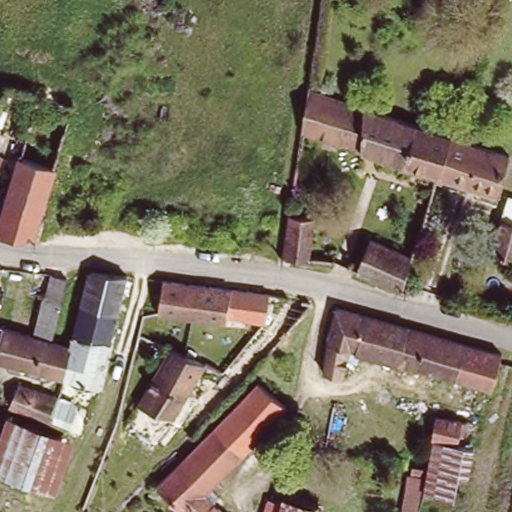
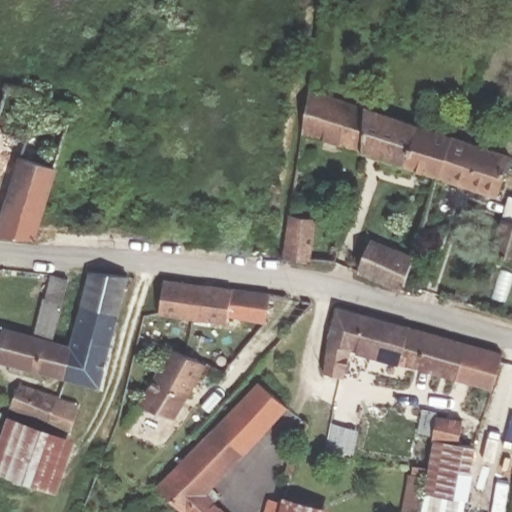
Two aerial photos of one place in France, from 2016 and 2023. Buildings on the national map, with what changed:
unchanged [(435,177),(312,136),(309,157),(295,155),(305,88),(447,136),(435,177)]
unchanged [(2,97),(0,106),(0,97),(2,97)]
unchanged [(447,136),(505,156),(493,196),(435,177),(447,136)]
unchanged [(52,166),(33,239),(0,234),(0,214),(18,158),(52,166)]
unchanged [(508,198),(512,199),(512,259),(490,250),(508,198)]
unchanged [(286,219),(312,223),(306,261),(290,260),(280,258),(286,219)]
unchanged [(395,289),(352,269),(367,235),(408,254),(395,289)]
unchanged [(60,305),(50,343),(32,338),(42,300),(46,301),(54,268),(68,269),(60,305)]
unchanged [(88,282),(91,271),(127,279),(97,390),(61,380),(70,349),(88,282)]
unchanged [(263,325),(228,317),(228,322),(157,313),(162,278),(267,293),(263,325)]
unchanged [(338,307),(502,355),(492,389),(348,348),(340,377),(318,370),(338,307)]
unchanged [(61,380),(0,360),(0,329),(32,338),(50,343),(52,344),(70,349),(61,380)]
unchanged [(205,363),(172,421),(137,403),(167,347),(205,363)]
unchanged [(175,464),(200,439),(255,381),(279,404),(200,490),(224,512),(186,512),(156,485),(175,464)]
unchanged [(0,475),(0,434),(17,384),(81,405),(55,491),(0,475)]
unchanged [(474,447),(436,439),(437,435),(420,431),(423,415),(478,426),(474,447)]
unchanged [(424,490),(420,512),(400,512),(409,469),(425,471),(430,433),(437,435),(436,439),(474,447),(463,497),(424,490)]
unchanged [(272,493),(313,507),(311,512),(266,512),(271,497),(272,493)]
unchanged [(254,512),(260,494),(271,497),(266,512),(254,512)]

